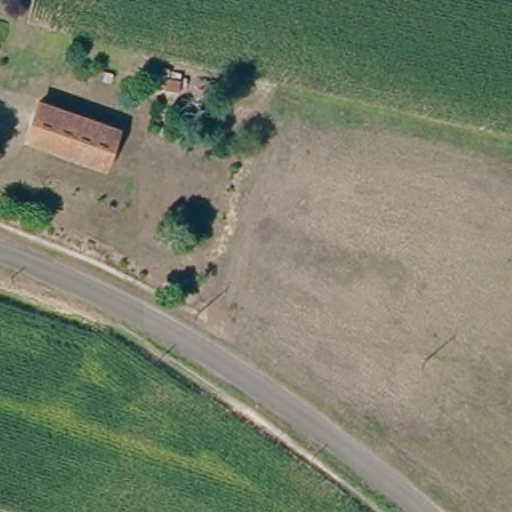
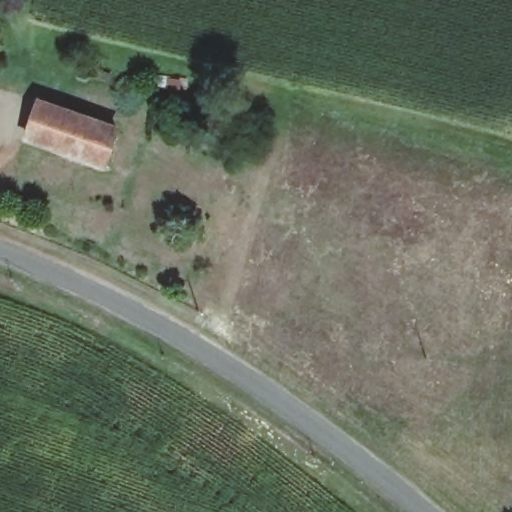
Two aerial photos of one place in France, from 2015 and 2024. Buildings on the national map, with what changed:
unchanged [(18,138),(31,100),(108,126),(95,164),(18,138)]

